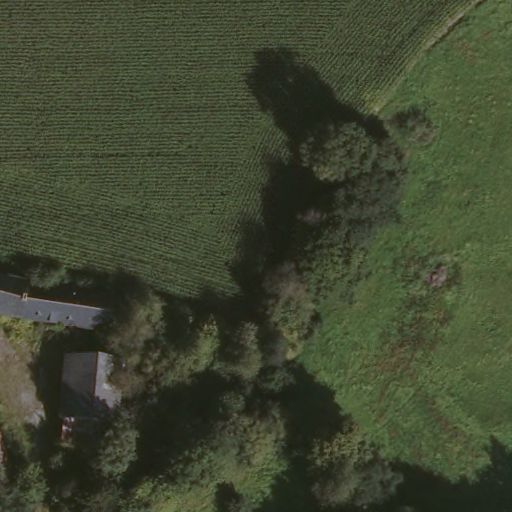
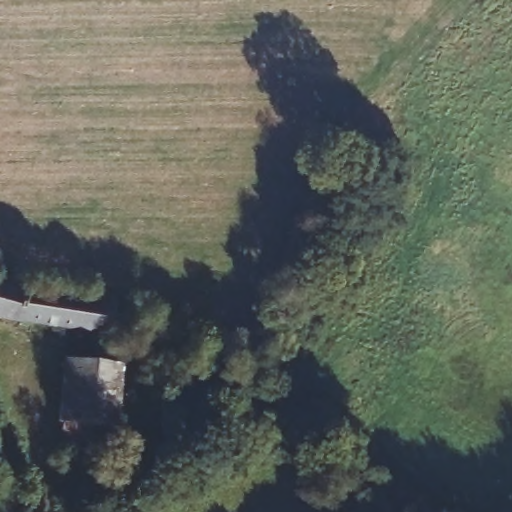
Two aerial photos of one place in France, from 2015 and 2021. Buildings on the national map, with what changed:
unchanged [(114,307),(104,336),(0,321),(0,279),(114,307)]
unchanged [(119,363),(111,448),(61,445),(68,361),(119,363)]
unchanged [(14,483),(0,487),(0,439),(14,483)]

